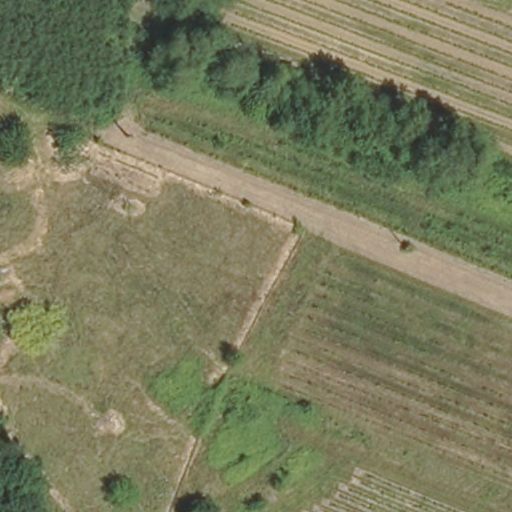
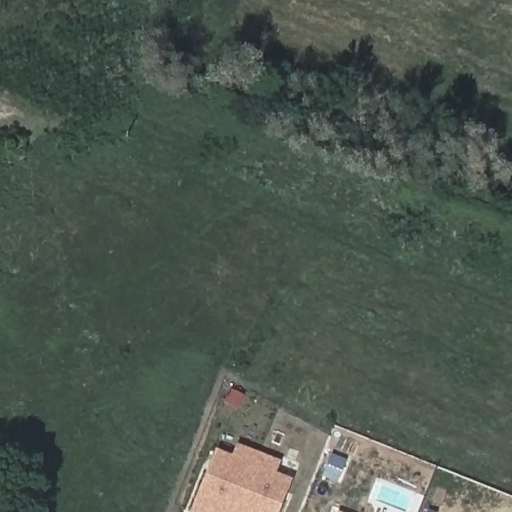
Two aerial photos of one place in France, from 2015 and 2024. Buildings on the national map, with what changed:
new [(231,455),(236,443),(281,460),(276,472),(293,479),(280,512),(190,512),(215,449),(231,455)]
new [(337,512),(337,511),(339,512),(337,512)]

